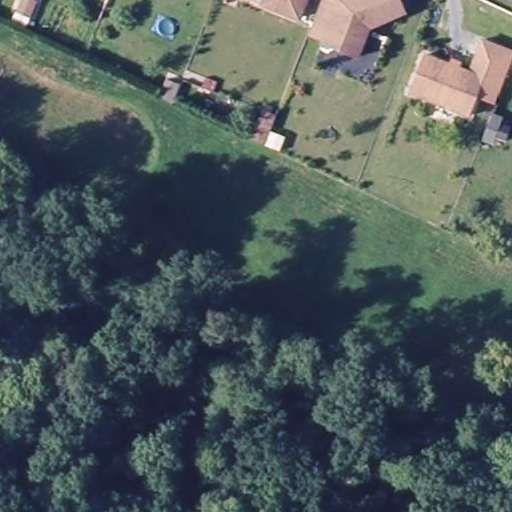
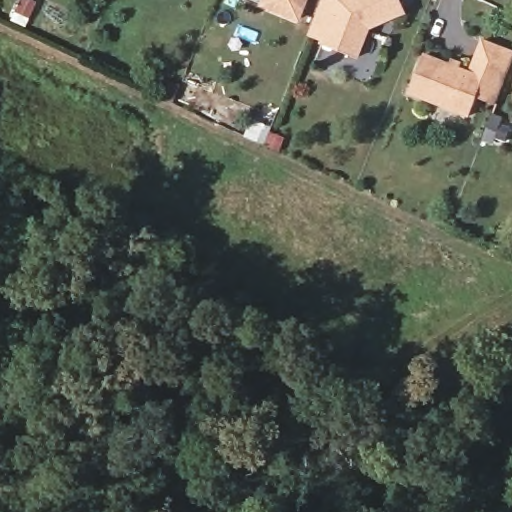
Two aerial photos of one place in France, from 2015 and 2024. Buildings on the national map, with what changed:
unchanged [(256,0),(269,0),(267,5),(256,0)]
unchanged [(267,5),(269,0),(309,0),(302,18),(267,5)]
unchanged [(391,0),(399,18),(363,32),(352,61),(316,47),(318,44),(303,38),(317,0),(323,0),(332,4),(341,0),(391,0)]
unchanged [(486,75),(472,70),(482,41),(512,52),(512,61),(494,107),(478,101),(486,75)]
unchanged [(467,116),(407,93),(422,55),(444,64),(446,59),(462,66),(460,70),(482,79),(467,116)]

